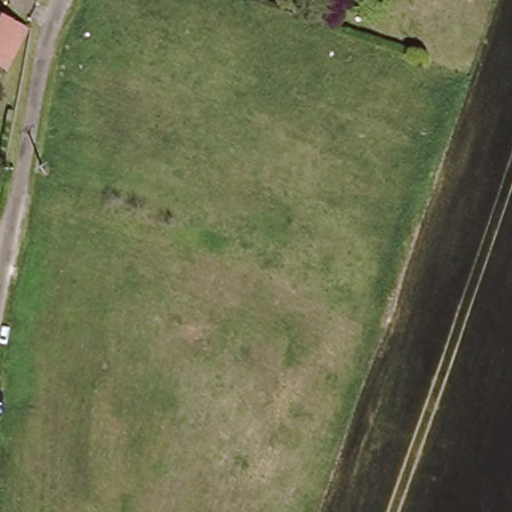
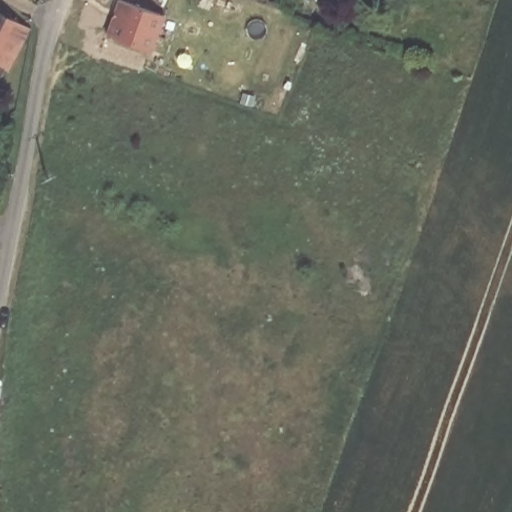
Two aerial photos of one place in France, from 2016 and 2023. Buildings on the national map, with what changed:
new [(120,4),(162,19),(149,54),(108,39),(120,4)]
unchanged [(0,81),(0,16),(31,34),(10,71),(6,70),(0,81)]

